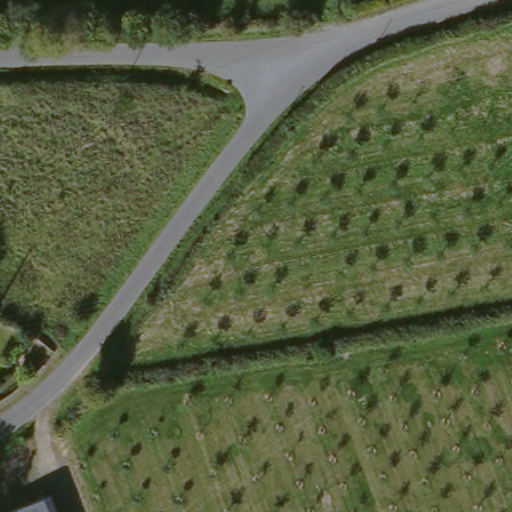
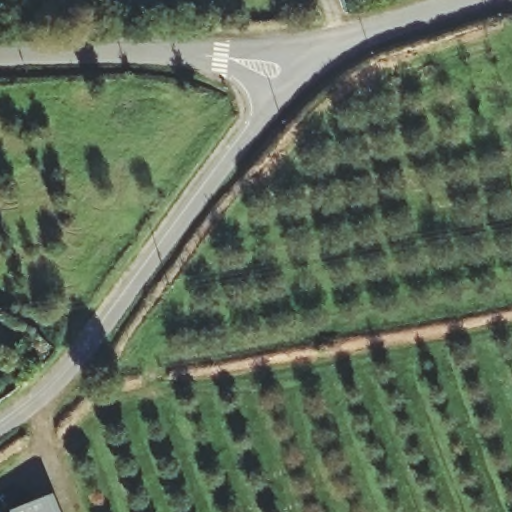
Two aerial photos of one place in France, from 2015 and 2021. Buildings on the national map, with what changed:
unchanged [(59,512),(9,512),(52,494),(59,512)]

